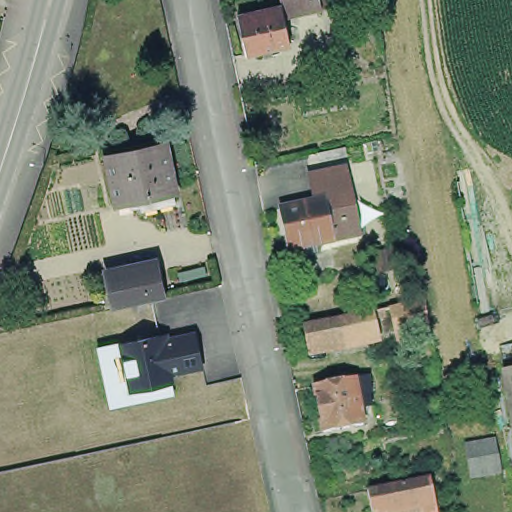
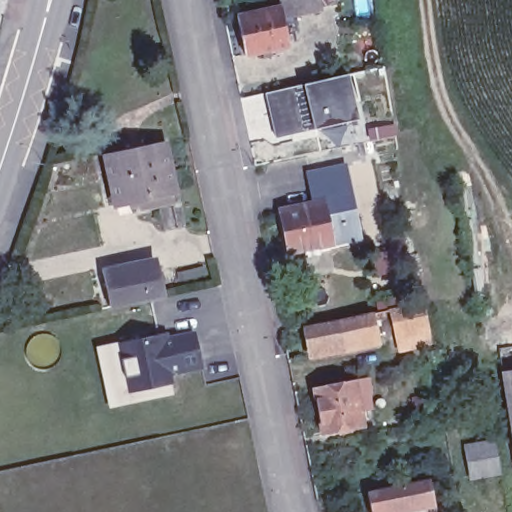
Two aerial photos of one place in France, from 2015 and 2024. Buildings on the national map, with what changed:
unchanged [(263,58),(261,51),(245,55),(237,16),(280,7),(279,0),(319,0),(320,6),(282,14),(289,46),(270,50),(271,56),(263,58)]
new [(347,72),(356,116),(272,136),(262,92),(347,72)]
unchanged [(130,203),(128,193),(107,198),(97,152),(116,148),(113,133),(132,129),(135,144),(154,140),(163,185),(160,186),(162,196),(130,203)]
unchanged [(323,206),(314,208),(308,178),(343,171),(350,201),(350,202),(358,243),(352,244),(332,248),(323,206)]
unchanged [(303,263),(301,255),(286,258),(277,215),(288,213),(314,208),(323,206),(332,248),(317,251),(319,259),(303,263)]
unchanged [(392,251),(396,271),(377,274),(373,254),(392,251)]
unchanged [(100,283),(98,273),(152,261),(154,271),(158,291),(124,298),(105,302),(100,283)]
unchanged [(389,333),(385,311),(419,303),(423,326),(426,343),(393,350),(389,333)]
unchanged [(296,329),(333,322),(368,314),(378,312),(380,321),(370,323),(372,337),(337,344),(300,352),(296,329)]
unchanged [(122,343),(158,335),(160,342),(181,338),(194,335),(200,364),(187,367),(166,372),(168,383),(132,391),(127,392),(124,377),(120,358),(117,344),(122,343)]
unchanged [(502,372),(512,370),(512,431),(502,372)]
unchanged [(354,374),(360,406),(351,408),(354,423),(313,430),(305,383),(354,374)]
unchanged [(442,415),(416,421),(413,406),(410,396),(428,392),(430,402),(438,400),(442,415)]
unchanged [(492,448),(497,477),(475,480),(471,451),(492,448)]
unchanged [(412,488),(429,485),(433,508),(434,512),(369,512),(366,497),(412,488)]

